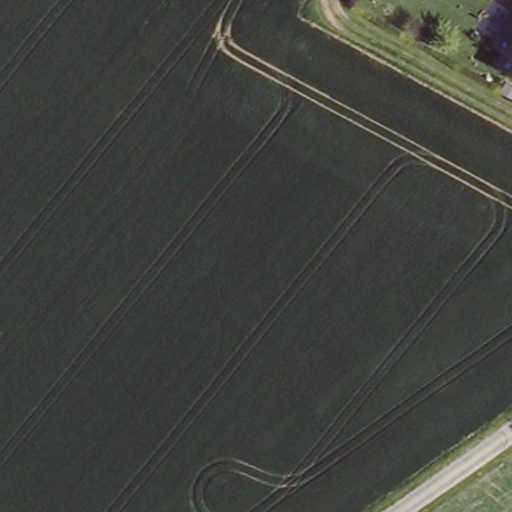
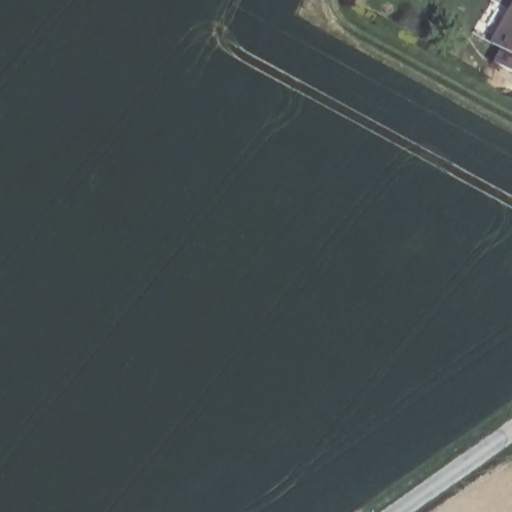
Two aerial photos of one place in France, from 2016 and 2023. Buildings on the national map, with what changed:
unchanged [(512,6),(512,49),(494,39),(512,6)]
unchanged [(494,39),(512,49),(512,76),(493,65),(501,50),(491,44),(494,39)]

